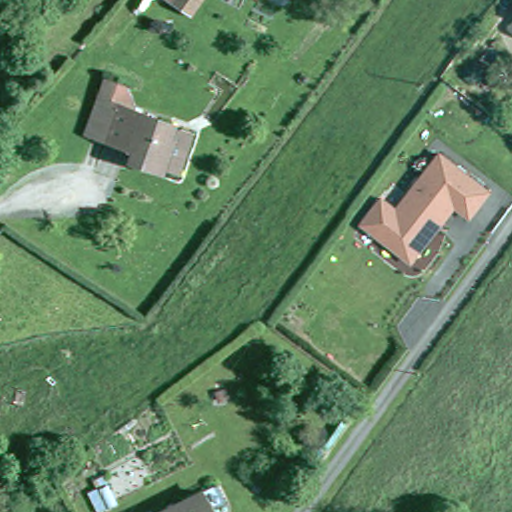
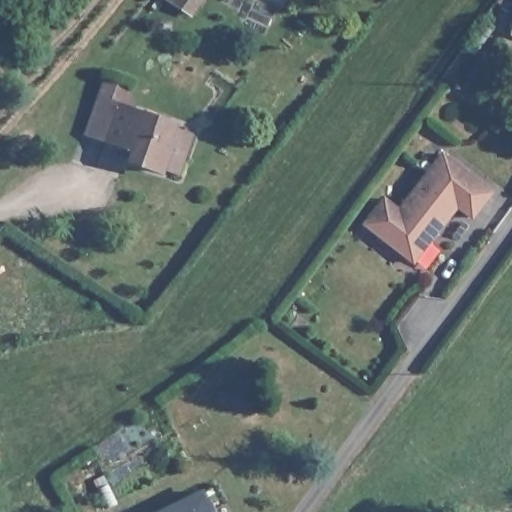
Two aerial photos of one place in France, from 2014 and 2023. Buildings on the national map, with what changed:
unchanged [(172,2),(174,0),(199,0),(190,14),(172,2)]
unchanged [(160,140),(165,142),(154,170),(122,159),(128,142),(120,139),(118,145),(82,132),(93,100),(101,80),(119,87),(112,105),(166,123),(160,140)]
unchanged [(491,190),(470,217),(457,207),(412,263),(360,222),(382,194),(397,206),(440,152),(491,190)]
unchanged [(196,487),(211,480),(219,497),(204,505),(207,512),(144,512),(196,487)]

